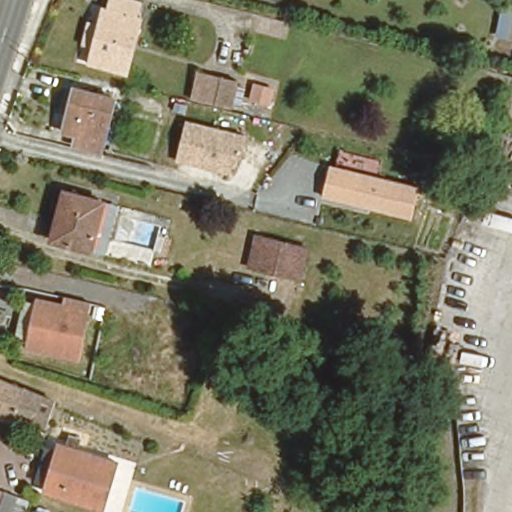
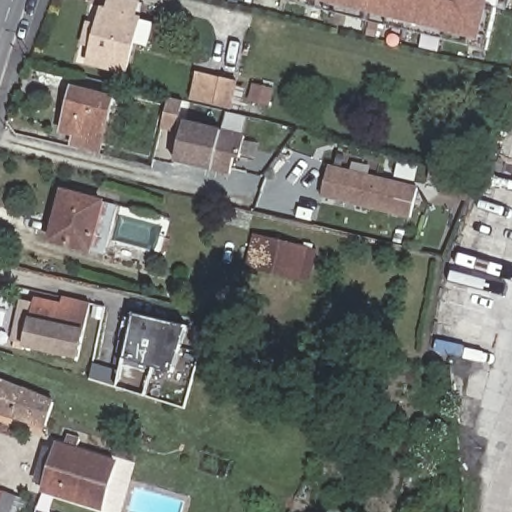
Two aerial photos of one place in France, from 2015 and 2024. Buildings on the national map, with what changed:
unchanged [(100,25),(105,8),(110,10),(112,0),(135,0),(139,1),(135,17),(140,18),(127,73),(90,64),(94,48),(81,45),(87,21),(100,25)]
new [(490,0),(481,39),(317,0),(490,0)]
demolished [(495,0),(512,0),(512,39),(490,37),(495,0)]
unchanged [(238,82),(232,109),(193,99),(199,73),(238,82)]
unchanged [(276,88),(271,106),(251,101),(256,82),(276,88)]
unchanged [(76,135),(63,132),(75,88),(116,99),(102,153),(82,148),(74,146),(76,135)]
unchanged [(242,162),(234,160),(229,177),(175,165),(185,120),(246,134),(242,162)]
unchanged [(413,220),(323,199),(332,165),(420,186),(413,220)]
unchanged [(105,254),(90,251),(51,242),(64,193),(102,203),(117,206),(105,254)]
unchanged [(309,251),(301,285),(246,272),(254,238),(309,251)]
unchanged [(63,306),(67,289),(92,295),(80,359),(27,347),(27,345),(15,343),(23,303),(35,306),(36,300),(63,306)]
demolished [(203,316),(199,333),(150,323),(153,305),(203,316)]
new [(187,326),(174,374),(162,370),(159,379),(150,381),(146,396),(117,388),(126,357),(137,313),(187,326)]
unchanged [(313,377),(327,379),(318,405),(304,403),(313,377)]
unchanged [(47,429),(33,424),(0,414),(0,378),(44,391),(56,395),(47,429)]
unchanged [(117,462),(103,510),(45,492),(47,486),(35,482),(46,446),(57,450),(59,445),(117,462)]
unchanged [(13,491),(26,496),(20,512),(0,512),(0,487),(13,491)]

